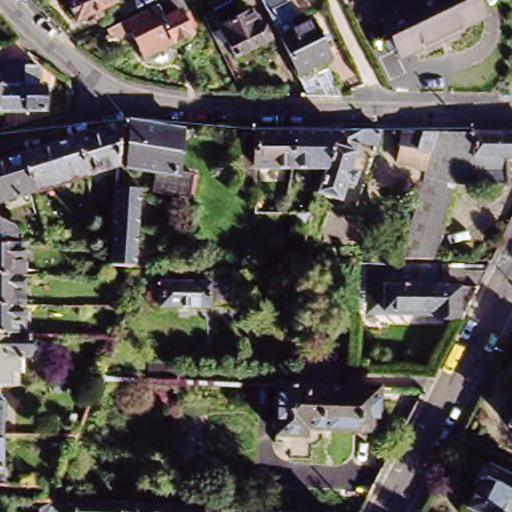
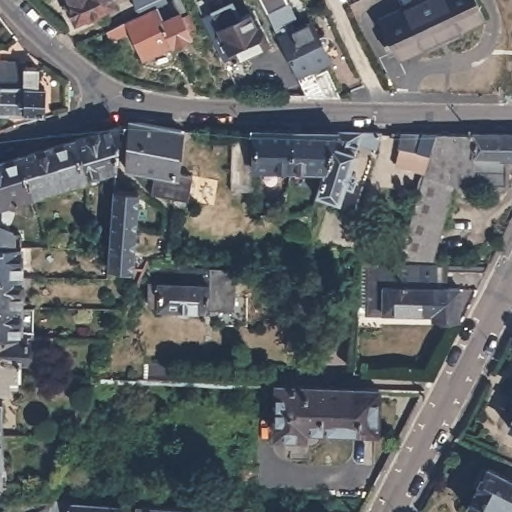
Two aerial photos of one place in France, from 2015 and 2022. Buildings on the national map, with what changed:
unchanged [(78,30),(66,7),(71,5),(68,0),(114,0),(118,9),(78,30)]
unchanged [(188,37),(141,59),(128,30),(124,32),(126,36),(118,41),(117,38),(113,40),(108,31),(141,16),(133,0),(172,0),(148,12),(154,24),(178,13),(188,37)]
unchanged [(215,3),(222,0),(238,0),(244,13),(258,6),(274,39),(238,56),(230,40),(222,43),(219,37),(208,11),(217,7),(215,3)]
unchanged [(390,62),(373,22),(420,0),(476,0),(484,17),(390,62)]
unchanged [(266,13),(287,2),(294,17),(289,20),(293,30),(310,22),(329,59),(310,69),(314,78),(329,70),(344,98),(309,98),(273,27),(266,13)]
unchanged [(13,52),(14,57),(8,58),(8,51),(13,52)]
unchanged [(8,69),(8,62),(35,64),(35,69),(49,70),(48,87),(54,88),(53,114),(8,112),(8,69)]
unchanged [(0,112),(0,69),(8,69),(8,112),(0,112)]
unchanged [(160,200),(158,200),(156,199),(154,199),(153,197),(153,196),(152,196),(152,193),(152,192),(152,189),(152,184),(152,183),(152,175),(144,172),(132,167),(129,166),(123,163),(123,154),(124,124),(125,124),(136,125),(176,134),(173,174),(176,176),(178,177),(182,178),(181,180),(179,185),(174,197),(173,199),(172,202),(171,203),(166,202),(164,201),(160,200)]
unchanged [(111,169),(81,177),(71,140),(104,129),(114,127),(111,169)]
unchanged [(264,168),(263,193),(243,193),(246,131),(264,131),(264,168)]
unchanged [(303,131),(299,169),(264,168),(264,131),(303,131)]
unchanged [(299,169),(303,131),(349,132),(334,169),(299,169)]
unchanged [(388,148),(370,141),(360,168),(368,171),(363,183),(356,180),(349,199),(326,191),(334,169),(349,132),(396,133),(388,148)]
unchanged [(398,148),(398,133),(431,133),(512,134),(512,160),(502,159),(501,186),(448,186),(427,260),(394,258),(425,151),(414,149),(398,148)]
unchanged [(22,173),(18,156),(56,144),(71,140),(81,177),(26,190),(22,173)]
unchanged [(18,156),(22,173),(26,190),(0,197),(0,161),(18,156)]
unchanged [(111,254),(113,236),(114,206),(115,196),(141,198),(138,238),(137,257),(136,278),(119,277),(110,276),(111,256),(111,254)]
unchanged [(2,223),(3,229),(8,228),(10,233),(13,234),(14,235),(15,236),(16,238),(17,240),(17,242),(16,246),(16,277),(0,277),(0,223),(2,223)]
unchanged [(153,271),(228,271),(228,310),(203,310),(203,311),(153,312),(153,287),(144,287),(140,286),(141,278),(141,276),(141,265),(145,265),(153,264),(153,271)]
unchanged [(360,264),(384,266),(384,272),(384,280),(371,280),(371,308),(384,308),(384,312),(433,312),(433,317),(355,315),(360,264)]
unchanged [(433,312),(384,312),(384,308),(371,308),(371,280),(384,280),(384,272),(434,272),(434,288),(447,288),(447,271),(486,271),(462,317),(433,317),(433,312)]
unchanged [(16,277),(15,307),(0,307),(0,277),(16,277)]
unchanged [(15,307),(14,336),(0,336),(0,307),(15,307)]
unchanged [(23,336),(23,366),(16,366),(16,379),(12,379),(13,387),(0,387),(0,336),(14,336),(23,336)]
unchanged [(146,361),(176,362),(176,381),(157,380),(146,380),(146,361)]
unchanged [(276,384),(379,388),(377,430),(304,429),(303,436),(275,435),(276,384)]
unchanged [(512,427),(504,423),(512,409),(512,427)]
unchanged [(463,511),(474,489),(469,487),(477,471),(482,473),(483,470),(504,480),(504,479),(512,482),(512,512),(464,512),(463,511)]
unchanged [(69,506),(86,507),(99,508),(120,509),(136,510),(136,512),(47,512),(48,508),(49,505),(50,505),(53,505),(69,506)]
unchanged [(173,512),(136,512),(136,510),(173,512)]

